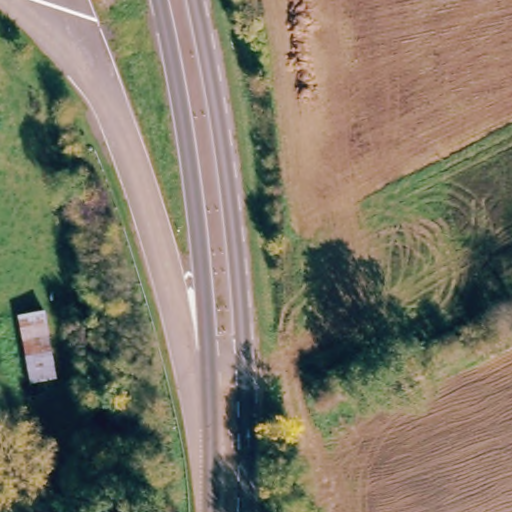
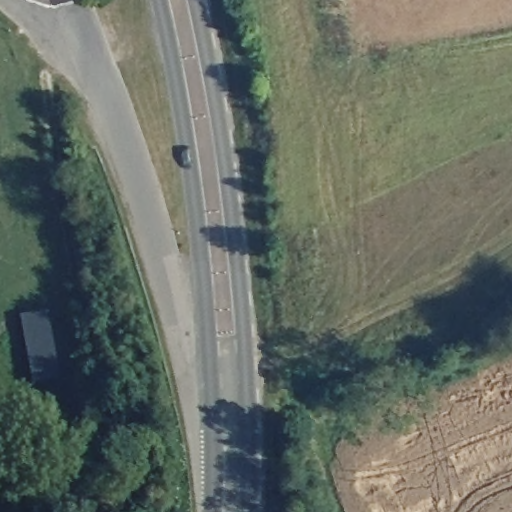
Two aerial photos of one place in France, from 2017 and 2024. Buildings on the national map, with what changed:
unchanged [(18,315),(43,309),(55,380),(28,385),(18,315)]

